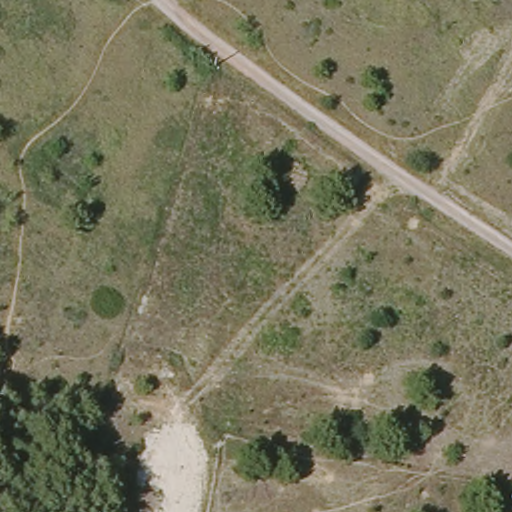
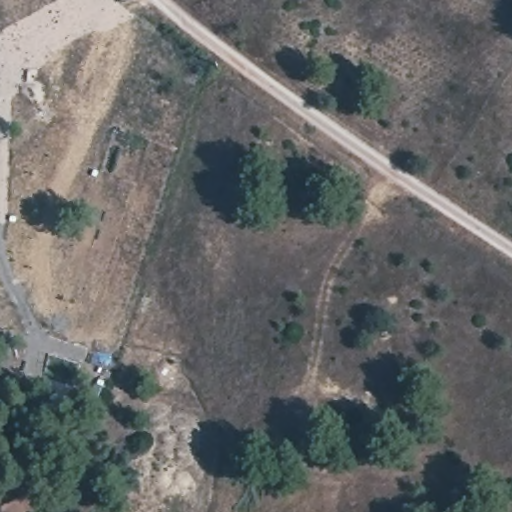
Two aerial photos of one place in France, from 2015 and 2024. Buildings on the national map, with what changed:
[]

